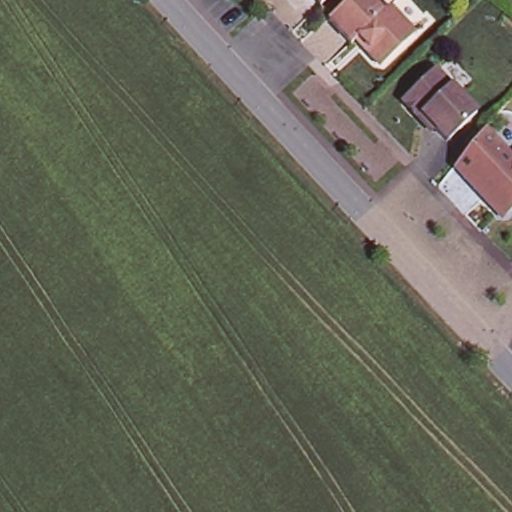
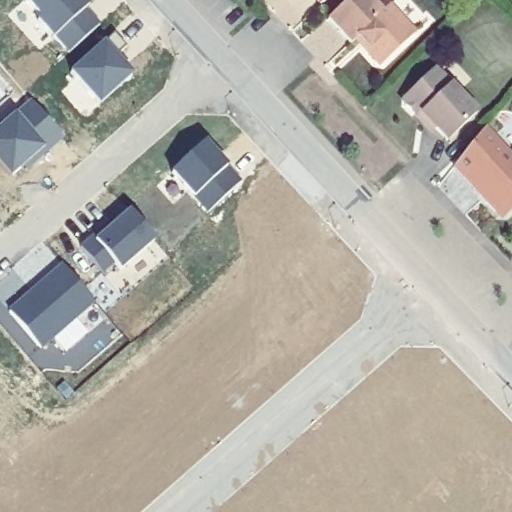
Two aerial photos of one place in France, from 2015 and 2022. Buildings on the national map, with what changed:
new [(91,2),(84,6),(100,21),(68,47),(38,14),(42,11),(33,0),(89,0),(91,2)]
unchanged [(315,10),(304,0),(326,0),(315,10)]
unchanged [(350,42),(327,19),(347,0),(370,0),(382,11),(388,6),(414,32),(382,63),(377,63),(367,56),(367,54),(352,40),(350,42)]
new [(107,39),(135,70),(102,99),(74,69),(107,39)]
unchanged [(418,120),(405,107),(405,99),(435,70),(477,113),(447,142),(435,129),(431,133),(418,120)]
new [(63,132),(13,172),(0,157),(0,126),(32,98),(63,132)]
unchanged [(454,172),(471,150),(485,133),(512,161),(512,211),(505,218),(497,217),(488,207),(475,194),(454,172)]
new [(242,179),(209,209),(175,170),(207,139),(242,179)]
new [(112,224),(116,227),(131,215),(156,243),(122,273),(116,266),(104,276),(82,251),(94,240),(112,224)]
new [(64,268),(95,304),(42,351),(11,315),(64,268)]

